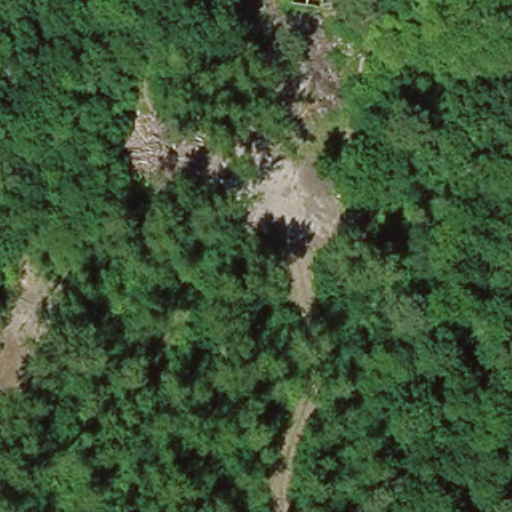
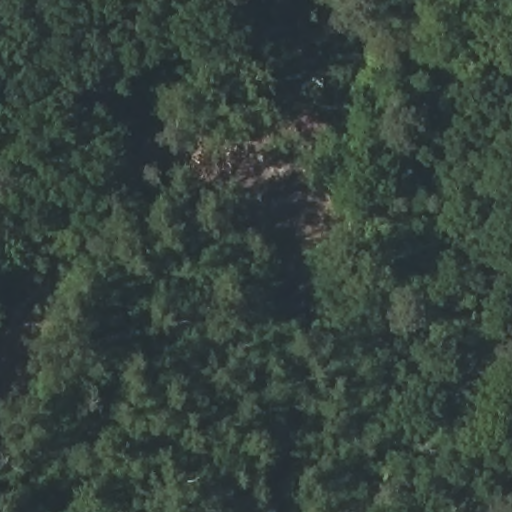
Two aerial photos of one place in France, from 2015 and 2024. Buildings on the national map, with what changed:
unchanged [(0,162),(13,165),(0,224),(0,162)]

